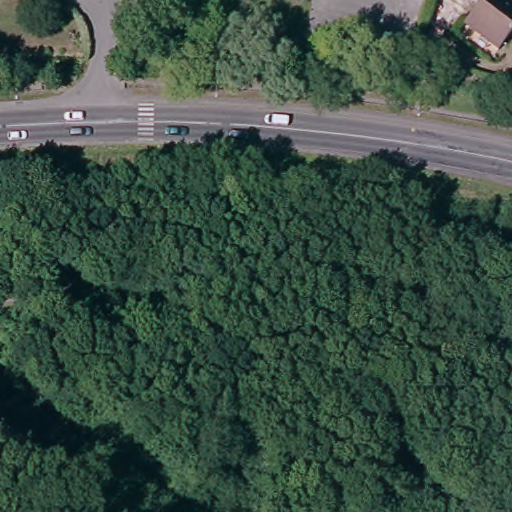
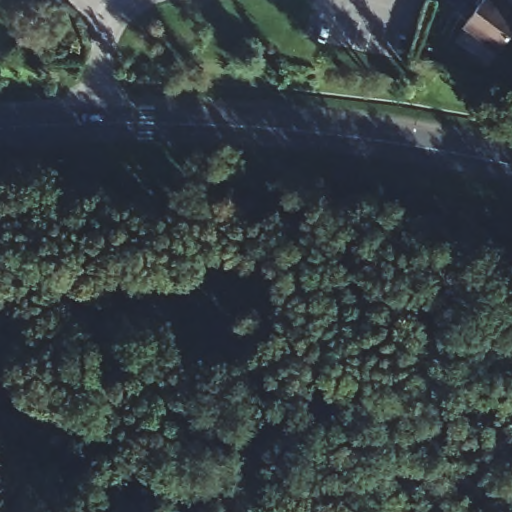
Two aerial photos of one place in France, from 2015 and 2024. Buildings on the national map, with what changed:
unchanged [(456,28),(470,8),(476,0),(477,0),(509,24),(486,58),(464,41),(453,32),(456,28)]

